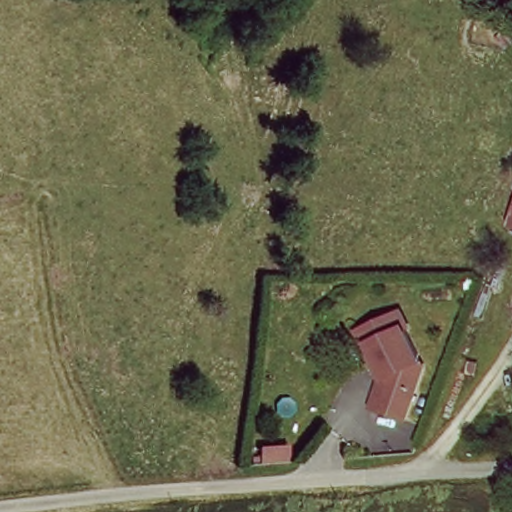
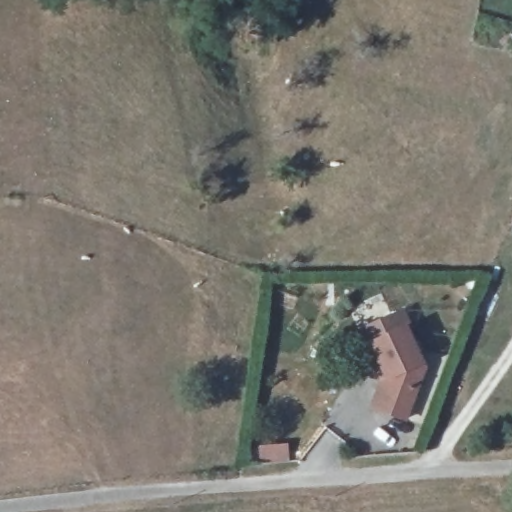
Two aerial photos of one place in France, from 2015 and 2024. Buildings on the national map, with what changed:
unchanged [(431,359),(413,418),(380,408),(385,388),(356,331),(370,326),(410,309),(431,359)]

